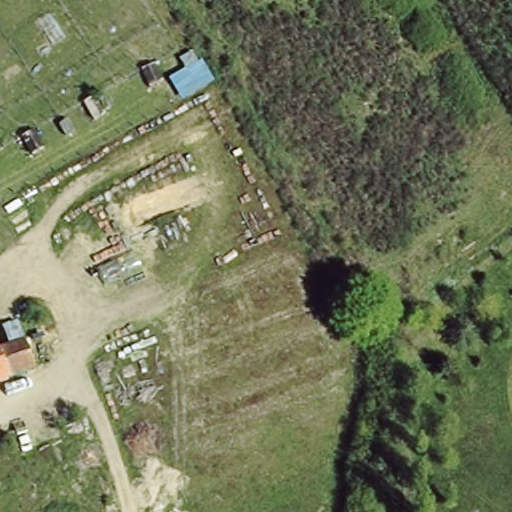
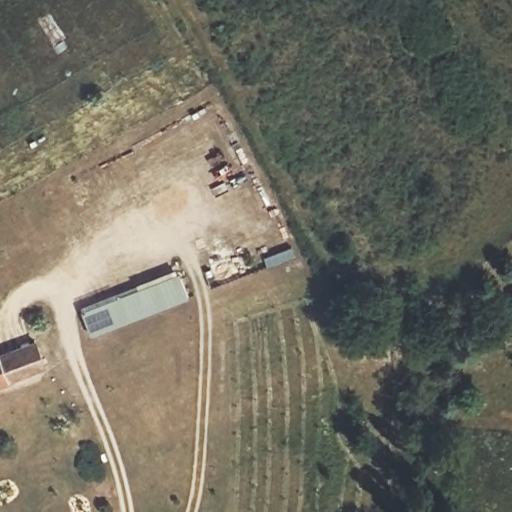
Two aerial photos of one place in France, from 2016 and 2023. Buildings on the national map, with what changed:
new [(180,271),(190,295),(92,334),(82,309),(180,271)]
unchanged [(38,370),(0,384),(0,349),(1,352),(28,342),(38,370)]

